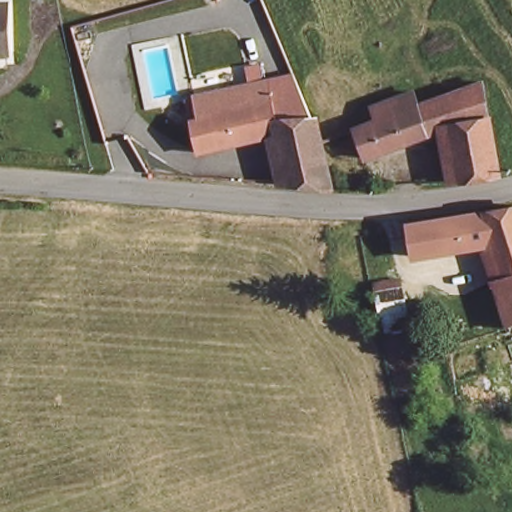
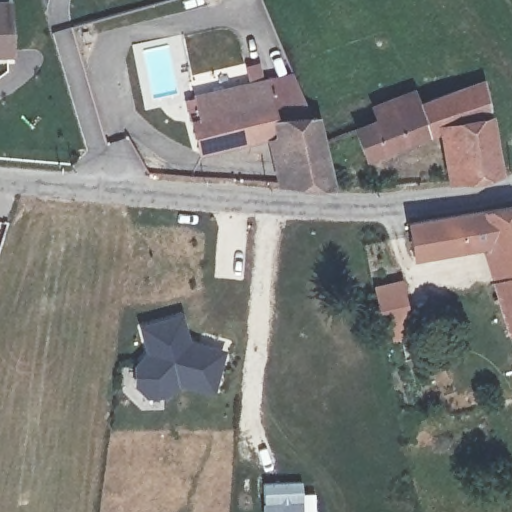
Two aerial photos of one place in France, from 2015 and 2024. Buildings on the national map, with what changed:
unchanged [(9,6),(8,53),(0,53),(0,6),(9,6)]
unchanged [(214,89),(215,92),(236,88),(252,85),(258,84),(272,81),(281,117),(282,117),(307,116),(312,116),(317,116),(322,138),(330,172),(332,183),(320,182),(316,182),(292,181),(280,180),(281,129),(205,148),(197,116),(203,115),(197,91),(214,89)]
unchanged [(380,122),(378,109),(419,96),(424,105),(487,84),(490,98),(500,173),(454,182),(447,132),(372,156),(362,129),(380,122)]
unchanged [(480,214),(504,212),(512,210),(512,306),(508,307),(498,308),(491,253),(415,255),(412,216),(426,215),(443,215),(480,214)]
unchanged [(405,281),(407,328),(383,332),(380,282),(405,281)]
new [(184,311),(191,339),(228,349),(216,395),(178,385),(165,397),(145,398),(134,386),(132,366),(145,353),(138,326),(184,311)]
new [(302,480),(303,493),(315,492),(316,512),(262,512),(261,482),(302,480)]

